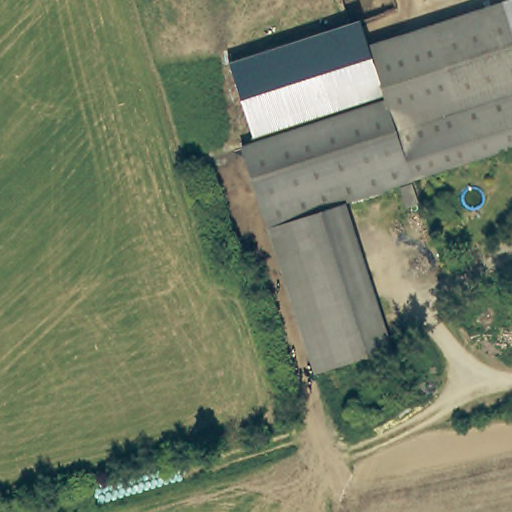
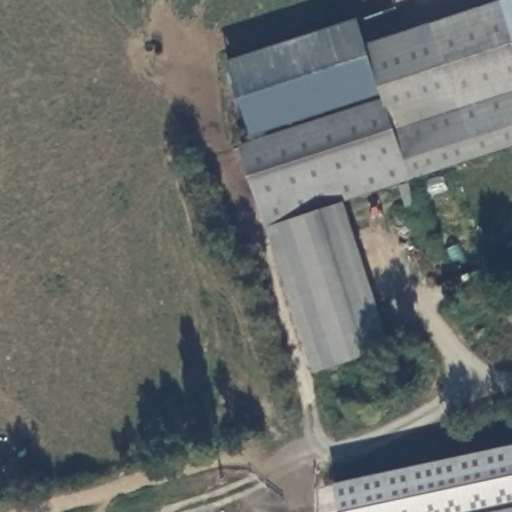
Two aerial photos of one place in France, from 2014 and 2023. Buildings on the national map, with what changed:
unchanged [(386,97),(369,44),(500,0),(512,0),(512,142),(338,200),(312,124),(386,97)]
unchanged [(230,62),(360,20),(369,44),(386,97),(312,124),(255,142),(230,62)]
unchanged [(387,346),(316,370),(243,147),(312,124),(338,200),(387,346)]
new [(512,446),(512,512),(341,512),(335,484),(512,446)]

